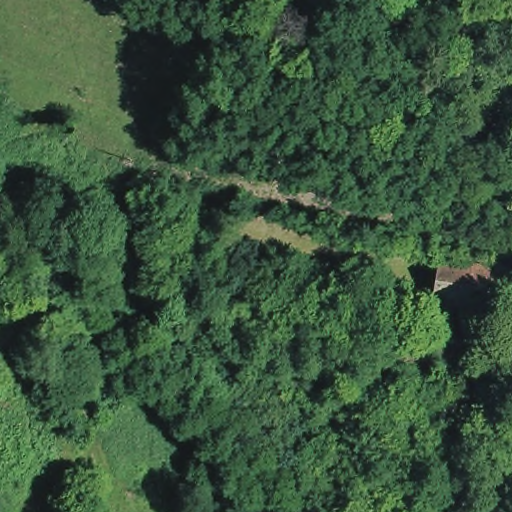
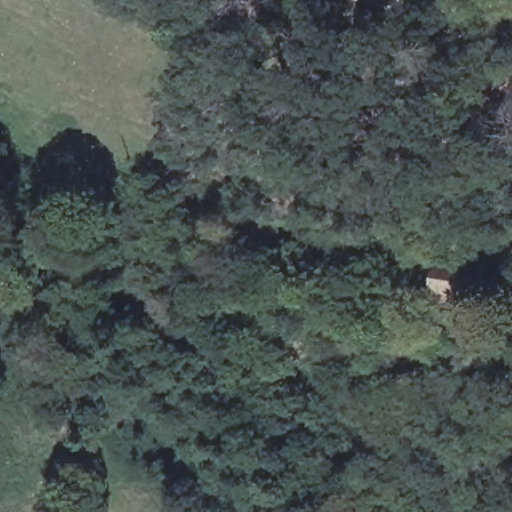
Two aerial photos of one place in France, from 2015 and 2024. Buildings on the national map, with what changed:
unchanged [(480,318),(430,309),(437,268),(487,276),(480,318)]

